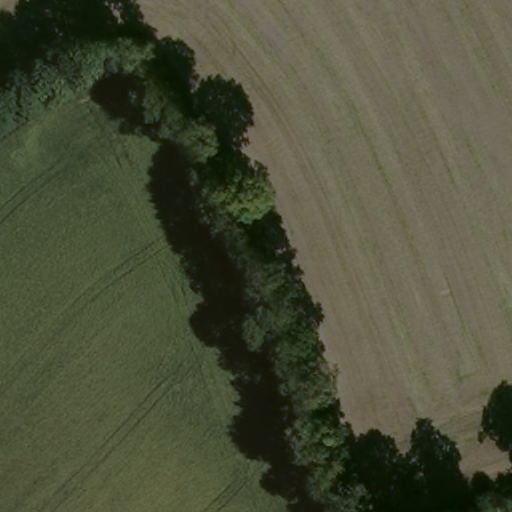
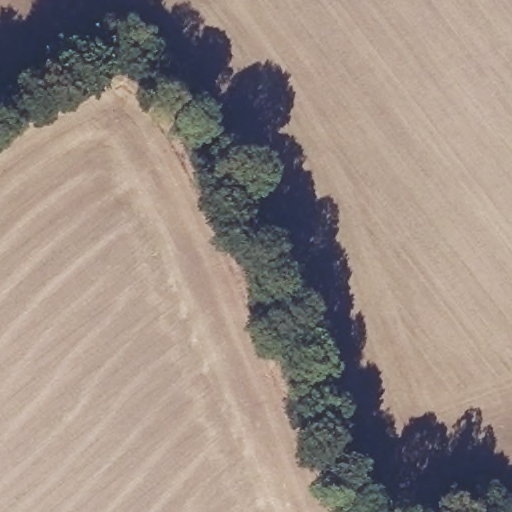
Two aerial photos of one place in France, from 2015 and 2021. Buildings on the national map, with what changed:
[]

